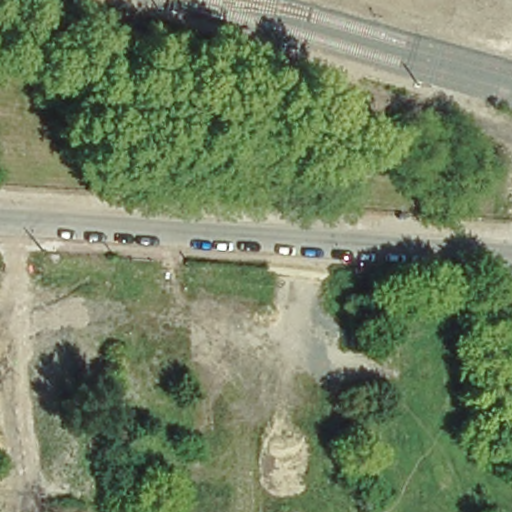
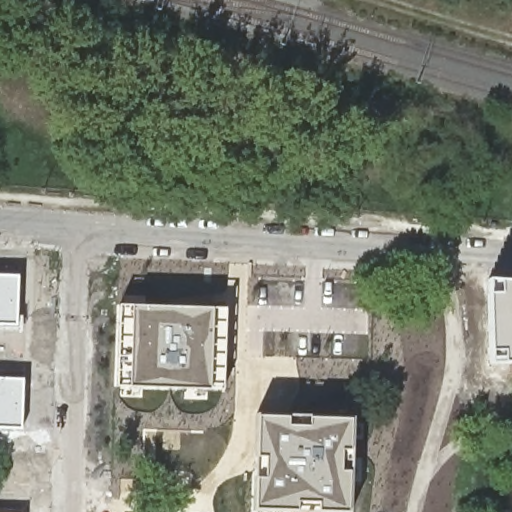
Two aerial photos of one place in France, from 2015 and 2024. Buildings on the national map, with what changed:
new [(0,274),(19,275),(17,325),(0,324),(0,274)]
new [(493,366),(487,280),(512,282),(512,365),(493,366)]
new [(116,386),(120,304),(227,308),(222,390),(116,386)]
new [(21,428),(0,427),(0,377),(22,378),(21,428)]
new [(258,413),(356,418),(351,512),(302,512),(254,510),(258,413)]
new [(23,512),(0,512),(0,509),(23,511),(23,512)]

